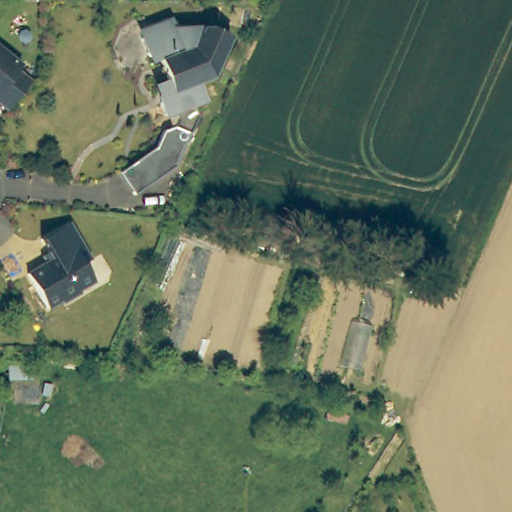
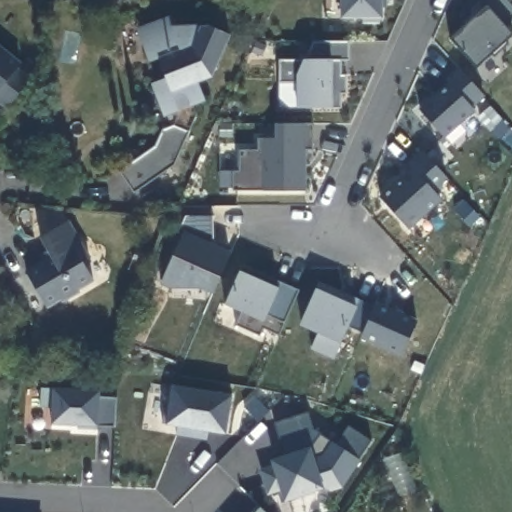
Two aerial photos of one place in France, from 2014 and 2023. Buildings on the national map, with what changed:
new [(383,8),(383,18),(379,23),(362,24),(366,19),(341,19),(341,0),(387,0),(387,8),(383,8)]
new [(512,21),(506,27),(512,34),(512,37),(477,68),(450,39),(467,27),(460,23),(471,13),(469,10),(480,0),(507,0),(512,5),(512,21)]
unchanged [(212,76),(200,78),(205,100),(196,103),(173,163),(131,191),(115,168),(154,141),(158,126),(174,123),(174,113),(163,116),(147,80),(163,75),(157,55),(142,59),(130,24),(166,14),(169,23),(192,24),(229,31),(212,76)]
new [(348,60),(341,60),(340,76),(346,76),(345,95),(341,95),(341,108),(332,108),(297,108),(297,82),(280,82),(280,61),(309,60),(314,42),(349,42),(348,60)]
unchanged [(18,61),(14,67),(27,77),(4,105),(0,102),(0,47),(18,61)]
new [(484,98),(474,109),(444,138),(418,109),(447,82),(444,80),(459,68),(484,98)]
new [(234,173),(241,173),(240,152),(259,152),(259,139),(275,138),(274,123),(313,125),(314,149),(307,149),(307,191),(264,191),(235,191),(234,173)]
new [(448,179),(434,193),(443,199),(410,230),(378,197),(411,168),(407,163),(422,151),(448,179)]
new [(216,294),(205,290),(161,289),(153,285),(185,231),(186,216),(214,216),(215,246),(232,253),(216,294)]
unchanged [(20,273),(45,258),(34,238),(62,223),(83,260),(75,264),(86,281),(39,307),(20,273)]
new [(243,273),(245,266),(299,291),(279,336),(264,328),(261,336),(236,327),(247,314),(225,305),(240,271),(243,273)]
new [(402,357),(359,338),(365,332),(350,324),(342,344),(334,360),(311,349),(322,335),(300,326),(317,289),(320,282),(375,306),(377,301),(417,321),(402,357)]
new [(226,435),(210,432),(208,441),(176,436),(180,428),(165,425),(170,385),(231,395),(226,435)]
new [(116,428),(100,427),(51,425),(52,409),(41,409),(41,389),(54,389),(101,391),(101,397),(117,399),(116,428)]
new [(344,488),(329,492),(324,489),(284,502),(281,492),(267,496),(260,472),(274,469),(272,460),(287,454),(274,423),(308,411),(313,430),(338,445),(349,426),(372,442),(344,488)]
new [(262,507),(266,512),(258,512),(262,507)]

